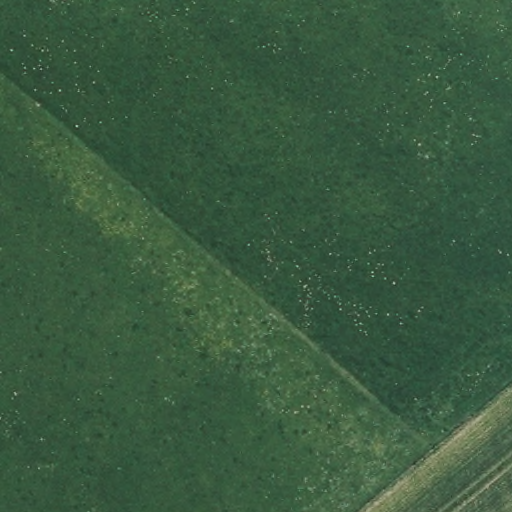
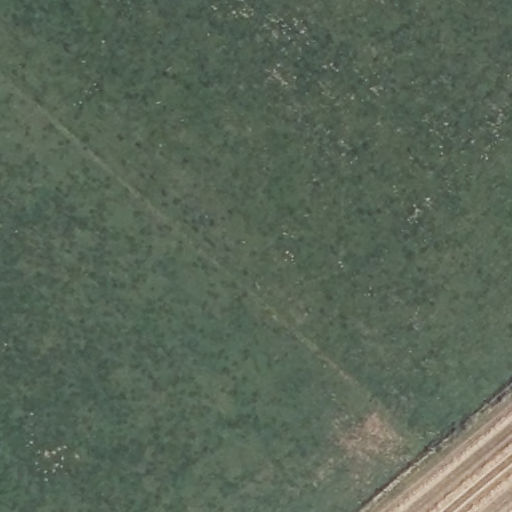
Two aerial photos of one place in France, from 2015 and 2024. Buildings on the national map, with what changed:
[]

